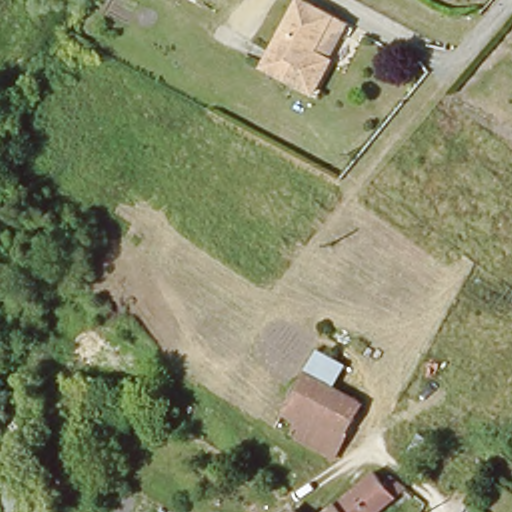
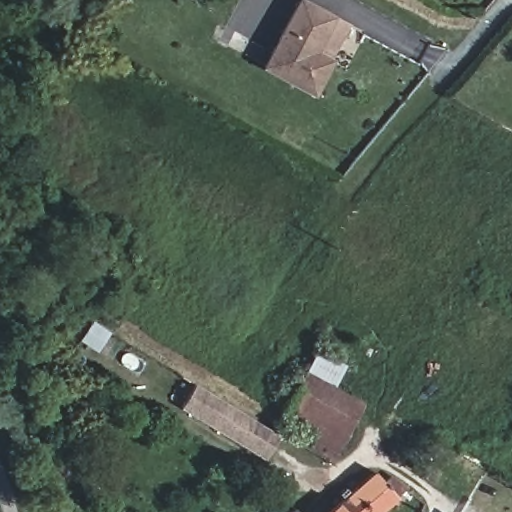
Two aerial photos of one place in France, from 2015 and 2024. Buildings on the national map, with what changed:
unchanged [(301,0),(349,25),(331,61),(334,62),(314,97),(262,70),(296,0),(301,0)]
unchanged [(363,402),(347,430),(293,403),(302,387),(310,372),(363,402)]
new [(194,382),(278,432),(280,433),(265,460),(179,408),(194,382)]
unchanged [(293,403),(347,430),(329,462),(280,433),(278,432),(293,403)]
unchanged [(373,478),(379,483),(386,479),(403,493),(383,512),(329,512),(373,478)]

